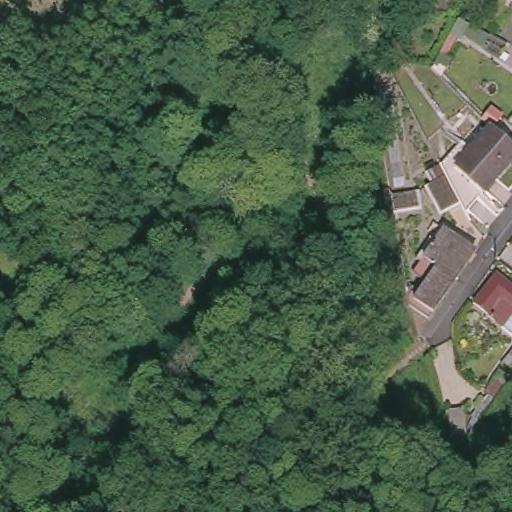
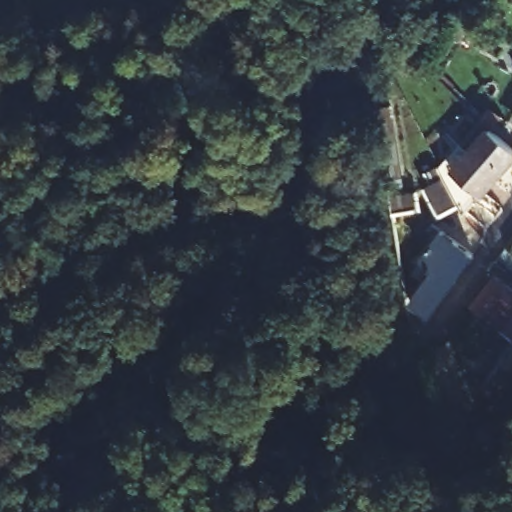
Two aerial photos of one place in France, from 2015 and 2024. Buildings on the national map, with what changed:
unchanged [(404,187),(393,188),(381,109),(392,107),(404,187)]
unchanged [(480,192),(453,167),(490,125),(512,145),(512,157),(480,192)]
unchanged [(425,187),(445,176),(440,165),(463,142),(471,147),(453,167),(480,192),(464,214),(460,207),(440,217),(425,187)]
unchanged [(422,211),(393,215),(391,196),(420,191),(422,211)]
unchanged [(437,264),(426,256),(446,226),(477,249),(432,314),(413,302),(437,264)]
unchanged [(512,291),(512,312),(500,328),(472,307),(493,277),(512,291)]
unchanged [(503,366),(512,352),(512,364),(508,370),(503,366)]

